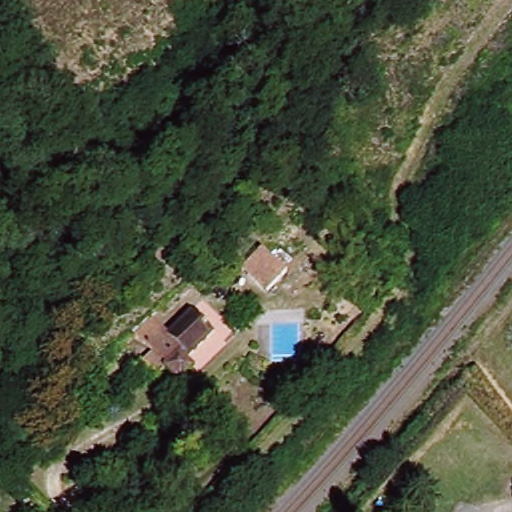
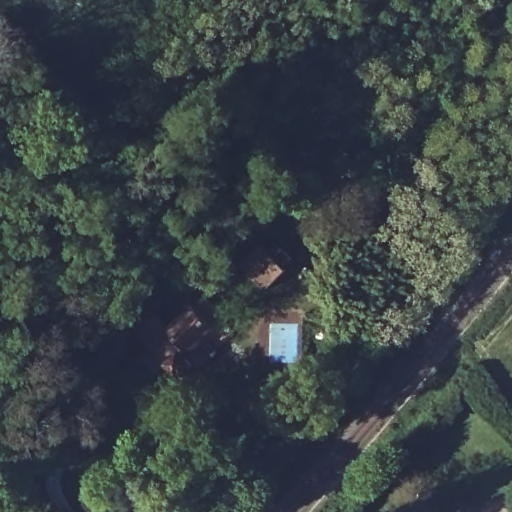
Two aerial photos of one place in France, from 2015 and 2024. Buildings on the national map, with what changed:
unchanged [(284,271),(264,291),(238,266),(258,246),(284,271)]
unchanged [(175,383),(170,387),(153,372),(160,362),(141,344),(158,325),(176,342),(196,318),(222,341),(196,369),(203,375),(190,390),(178,379),(175,383)]

